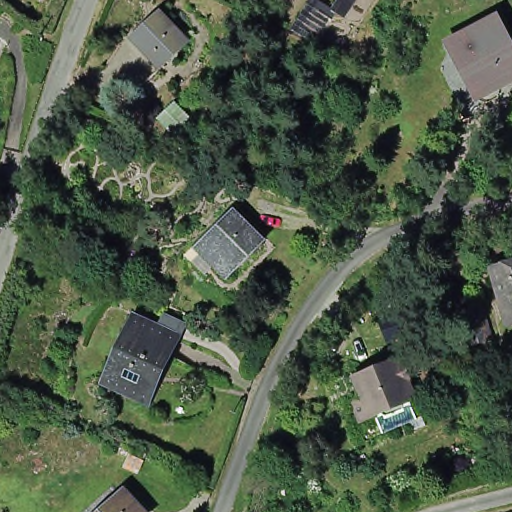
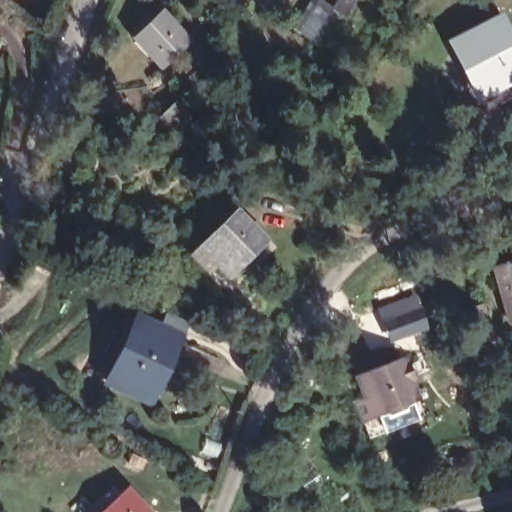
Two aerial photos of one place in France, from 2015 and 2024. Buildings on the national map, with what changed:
unchanged [(331,7),(335,0),(359,0),(344,30),(332,27),(316,46),(295,33),(312,0),(316,0),(331,7)]
unchanged [(465,39),(500,24),(507,21),(512,33),(512,90),(510,91),(505,82),(489,90),(465,39)]
unchanged [(188,44),(162,69),(142,45),(167,22),(188,44)]
unchanged [(190,117),(175,131),(164,119),(178,104),(190,117)]
unchanged [(228,279),(198,250),(233,215),(255,236),(264,244),(240,267),(228,279)]
unchanged [(507,322),(495,268),(512,265),(512,321),(507,322)]
new [(412,293),(427,329),(391,340),(377,306),(412,293)]
unchanged [(504,341),(502,341),(505,350),(489,355),(486,346),(485,346),(475,312),(494,306),(504,341)]
unchanged [(110,392),(102,388),(133,318),(140,321),(183,341),(155,403),(114,384),(110,392)]
unchanged [(351,388),(360,382),(354,364),(399,348),(414,392),(359,410),(351,388)]
unchanged [(420,410),(365,430),(359,410),(414,392),(420,410)]
unchanged [(147,512),(99,512),(126,488),(147,512)]

